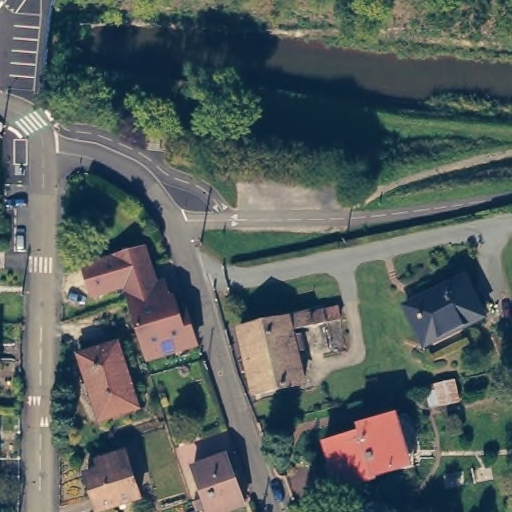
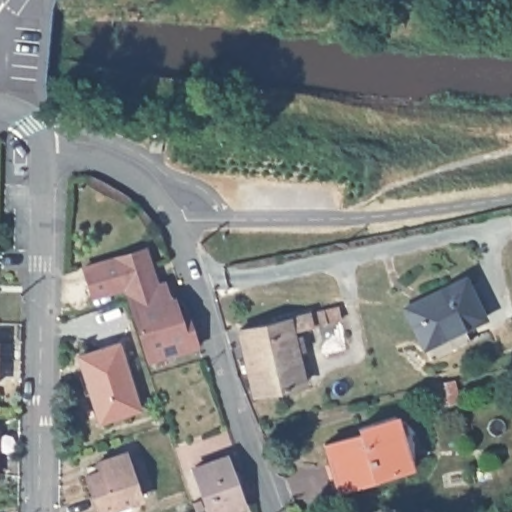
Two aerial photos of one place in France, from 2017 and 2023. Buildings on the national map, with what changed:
unchanged [(158,141),(170,142),(168,155),(157,153),(158,141)]
unchanged [(135,307),(130,291),(95,300),(84,266),(147,244),(167,294),(135,307)]
unchanged [(424,337),(407,302),(467,275),(487,315),(450,331),(427,342),(424,337)]
unchanged [(172,297),(177,311),(185,309),(195,342),(148,357),(133,309),(172,297)]
unchanged [(340,320),(292,329),(303,382),(255,392),(250,369),(242,371),(239,357),(247,355),(240,327),(337,308),(340,320)]
unchanged [(122,335),(143,400),(105,412),(84,347),(122,335)]
unchanged [(2,387),(0,387),(0,344),(3,344),(2,387)]
unchanged [(405,464),(372,472),(373,476),(337,485),(334,474),(325,440),(358,432),(357,424),(391,416),(404,458),(405,464)]
unchanged [(230,447),(247,496),(214,507),(197,458),(230,447)]
unchanged [(128,454),(143,500),(105,512),(103,512),(92,476),(105,472),(102,463),(128,454)]

